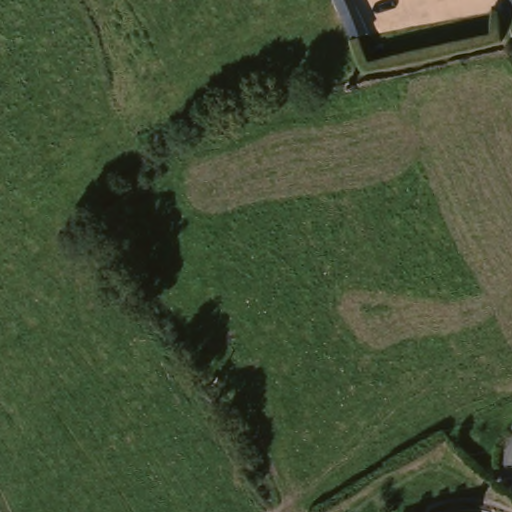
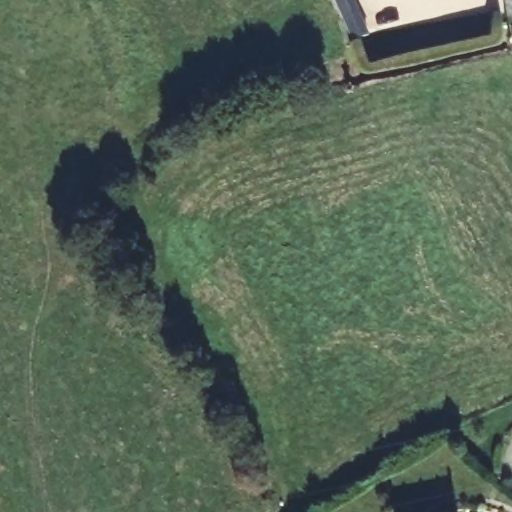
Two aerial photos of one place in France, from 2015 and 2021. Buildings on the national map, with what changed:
unchanged [(341,37),(332,5),(348,0),(350,0),(359,33),(362,41),(344,47),(341,37)]

